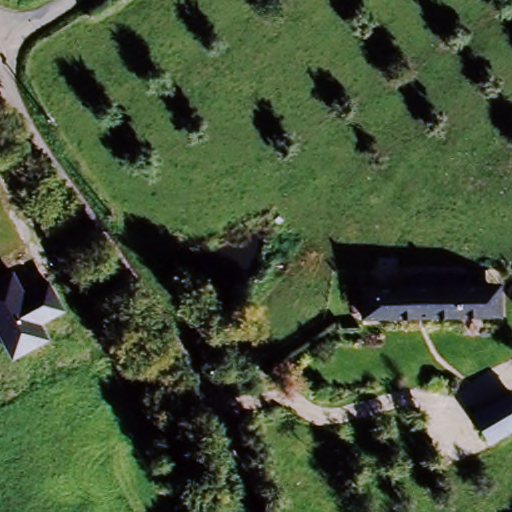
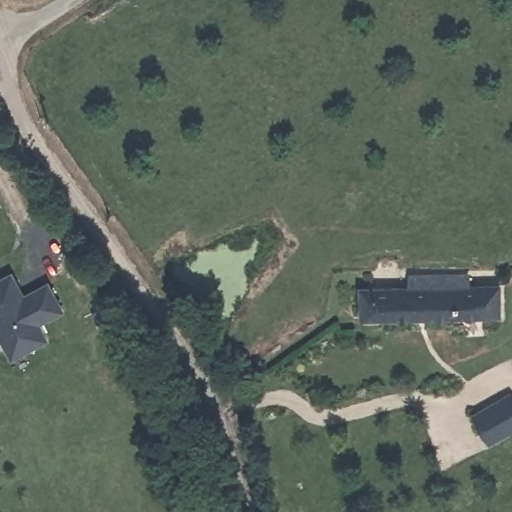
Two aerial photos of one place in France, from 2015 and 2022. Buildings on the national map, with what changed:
unchanged [(11,270),(23,293),(50,280),(65,312),(42,323),(50,340),(11,360),(0,338),(0,276),(11,270)]
unchanged [(368,300),(417,295),(416,282),(475,277),(475,288),(495,287),(507,286),(510,315),(497,317),(372,329),(368,300)]
unchanged [(471,416),(509,395),(512,400),(512,428),(485,442),(471,416)]

